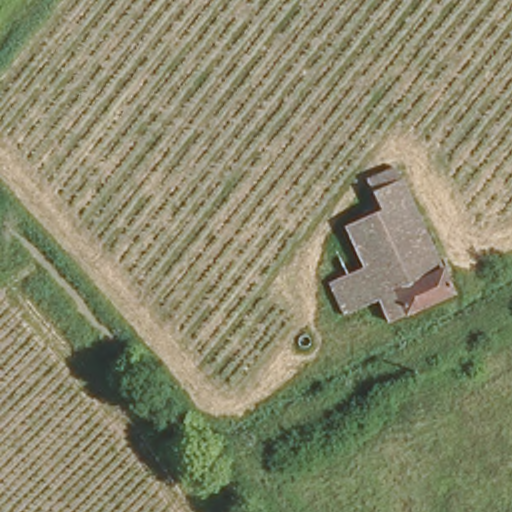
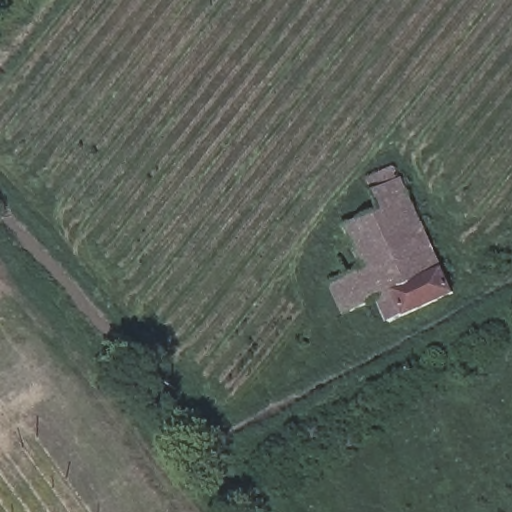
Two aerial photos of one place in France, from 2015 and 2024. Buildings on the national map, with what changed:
unchanged [(388,321),(379,301),(343,315),(329,282),(345,275),(364,267),(346,228),(380,213),(375,197),(369,184),(400,170),(406,183),(453,291),(388,321)]

